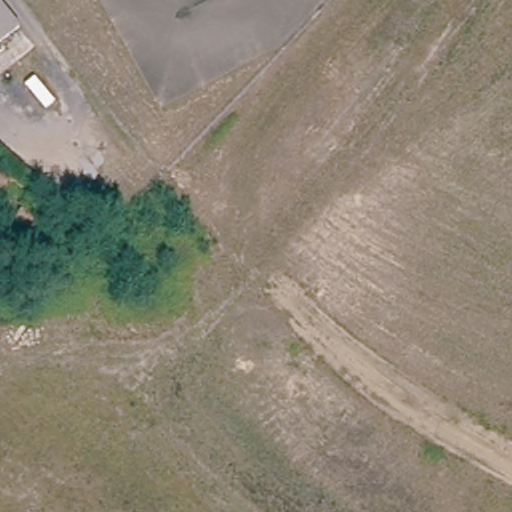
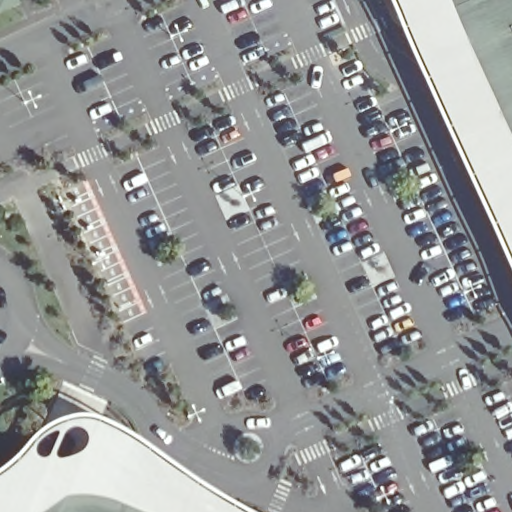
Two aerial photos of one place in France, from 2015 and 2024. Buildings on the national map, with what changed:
demolished [(0,52),(0,0),(7,0),(30,27),(0,52)]
new [(470,63),(512,156),(512,279),(492,236),(422,80),(386,0),(441,0),(442,3),(470,63)]
new [(442,3),(441,0),(512,0),(512,156),(470,63),(442,3)]
demolished [(50,220),(39,232),(22,219),(33,207),(50,220)]
new [(124,507),(104,499),(75,497),(62,497),(44,512),(0,512),(0,473),(10,466),(21,454),(35,437),(47,430),(60,423),(72,421),(86,422),(100,426),(117,436),(143,452),(202,492),(237,512),(135,512),(124,507)]
unchanged [(62,497),(75,497),(104,499),(124,507),(135,512),(44,512),(62,497)]

